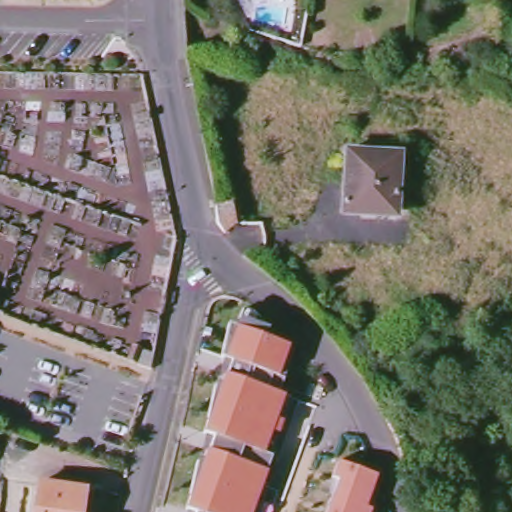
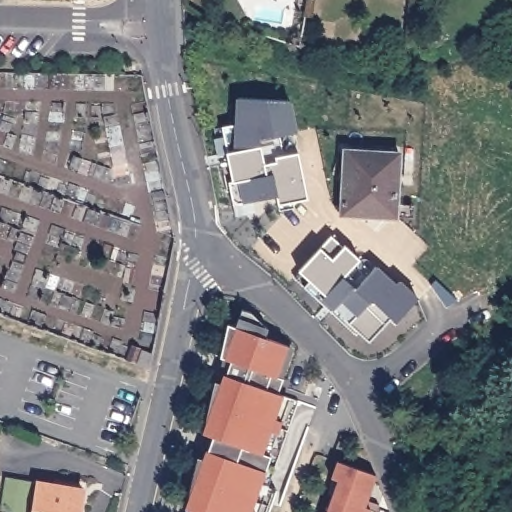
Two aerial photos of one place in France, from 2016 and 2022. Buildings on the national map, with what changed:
new [(297,133),(292,134),(297,153),(307,199),(279,205),(277,197),(254,202),(257,219),(236,223),(233,204),(228,184),(233,182),(227,154),(217,157),(213,139),(213,129),(222,128),(229,127),(231,105),(236,106),(236,100),(291,102),(297,133)]
unchanged [(344,213),(347,151),(400,154),(398,208),(365,206),(364,214),(344,213)]
demolished [(220,227),(216,206),(231,204),(235,223),(223,231),(220,227)]
new [(344,246),(359,261),(355,265),(367,277),(378,267),(398,284),(401,282),(418,298),(395,322),(391,319),(370,342),(350,324),(356,315),(341,299),(333,308),(331,312),(304,288),(310,281),(300,271),(321,249),(331,237),(344,246)]
unchanged [(193,497),(191,496),(198,464),(204,466),(208,451),(213,438),(205,436),(209,422),(208,421),(215,389),(220,391),(229,363),(225,362),(221,360),(228,328),(236,330),(242,313),(251,316),(267,332),(264,340),(287,348),(293,350),(278,395),(283,397),(289,399),(290,399),(285,414),(282,423),(278,435),(270,457),(272,457),(269,465),(271,466),(276,467),(261,512),(193,512),(188,511),(193,497)]
unchanged [(150,346),(149,349),(147,361),(133,356),(138,342),(150,346)]
unchanged [(333,481),(327,478),(333,462),(371,475),(362,500),(374,504),(372,512),(366,510),(365,512),(322,512),(324,509),(333,481)]
unchanged [(39,512),(40,506),(26,503),(30,479),(44,481),(88,487),(84,512),(39,512)]

